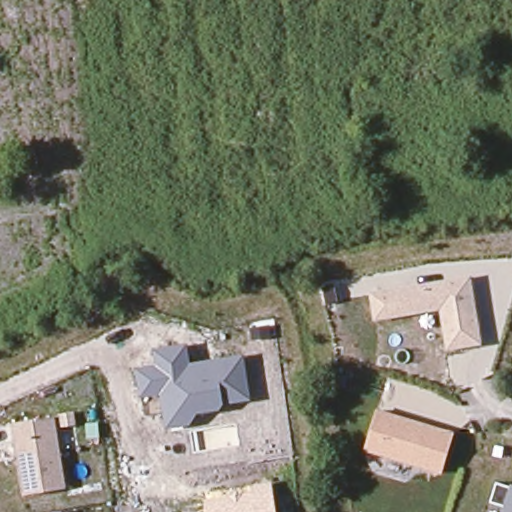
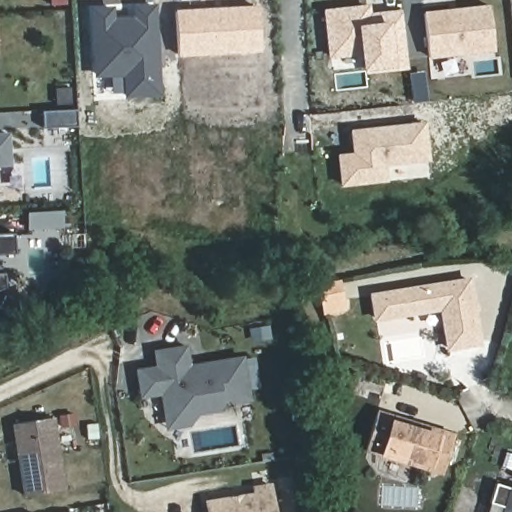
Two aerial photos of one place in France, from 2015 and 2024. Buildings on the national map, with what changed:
new [(402,10),(409,67),(362,72),(362,55),(330,59),(324,9),(363,5),(364,13),(402,10)]
new [(122,78),(93,78),(88,8),(115,7),(115,17),(133,16),(131,7),(158,6),(162,96),(123,97),(122,78)]
new [(260,6),(263,53),(180,58),(176,9),(260,6)]
new [(490,6),(496,59),(463,60),(463,55),(429,59),(424,11),(490,6)]
new [(74,110),(75,128),(40,129),(39,112),(74,110)]
new [(342,186),(338,154),(353,153),(350,130),(426,122),(430,180),(342,186)]
new [(11,165),(0,165),(0,132),(9,132),(11,165)]
new [(15,253),(0,253),(0,235),(14,234),(15,253)]
new [(0,273),(5,273),(5,286),(0,289),(0,273)]
unchanged [(447,351),(441,313),(375,323),(370,292),(473,277),(485,346),(447,351)]
unchanged [(224,405),(220,411),(197,415),(190,425),(166,429),(160,395),(140,398),(136,369),(155,365),(153,350),(188,344),(190,364),(245,356),(252,400),(224,405)]
unchanged [(445,476),(364,450),(377,409),(457,434),(445,476)]
unchanged [(59,415),(69,488),(29,496),(18,424),(59,415)]
unchanged [(207,512),(205,499),(254,492),(253,485),(272,482),(276,512),(207,512)]
unchanged [(503,512),(505,507),(492,503),(499,482),(512,485),(512,512),(503,512)]

